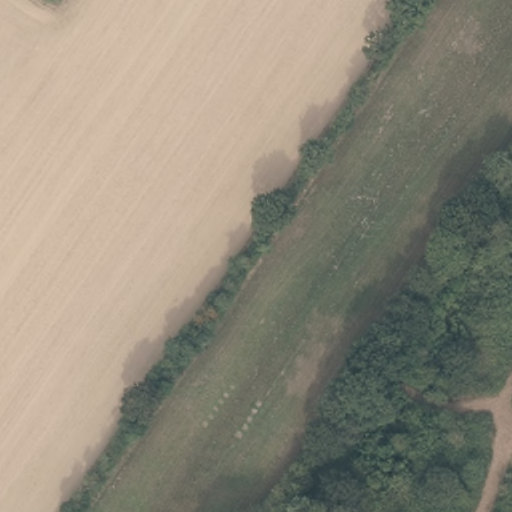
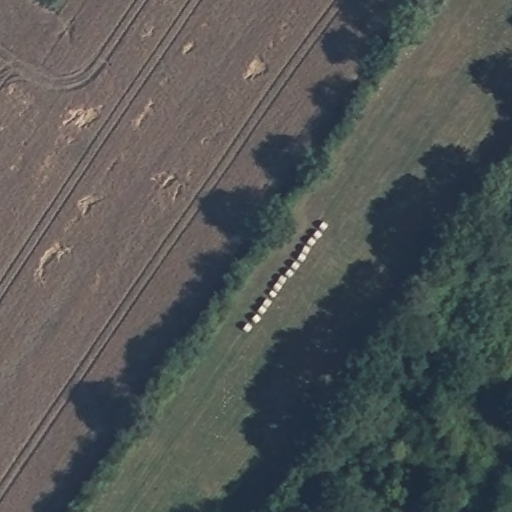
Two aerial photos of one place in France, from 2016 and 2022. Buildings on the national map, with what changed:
[]

